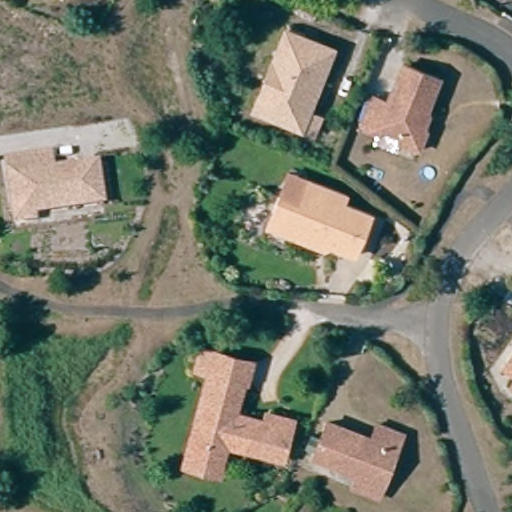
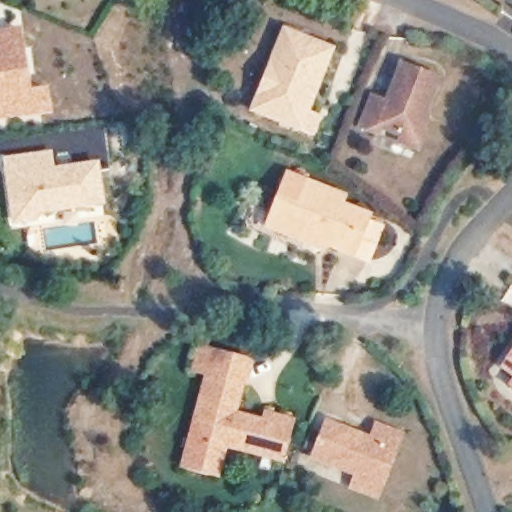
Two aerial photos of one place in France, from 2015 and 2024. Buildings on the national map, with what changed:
new [(0,120),(0,29),(21,26),(31,89),(49,86),(53,112),(0,120)]
unchanged [(272,66),(285,34),(332,52),(301,132),(280,124),(253,113),(272,66)]
unchanged [(419,148),(401,141),(403,134),(380,124),(377,131),(361,125),(373,95),(388,101),(403,63),(439,78),(419,127),(426,130),(419,148)]
unchanged [(12,226),(6,181),(3,163),(48,157),(50,174),(94,168),(100,206),(31,216),(32,223),(12,226)]
unchanged [(272,216),(278,199),(299,207),(308,183),(346,198),(343,206),(371,217),(356,258),(332,249),(324,252),(276,233),(266,229),(272,216)]
unchanged [(191,468),(194,453),(214,375),(198,371),(203,352),(220,356),(246,363),(242,382),(233,417),(267,425),(269,418),(291,423),(283,459),(226,444),(222,460),(218,475),(191,468)]
unchanged [(512,359),(512,374),(505,368),(512,359)]
unchanged [(356,492),(361,478),(316,462),(329,426),(373,442),(379,427),(405,437),(399,453),(381,501),(356,492)]

